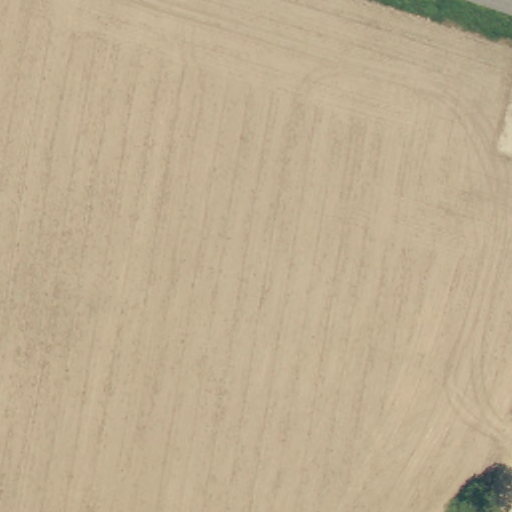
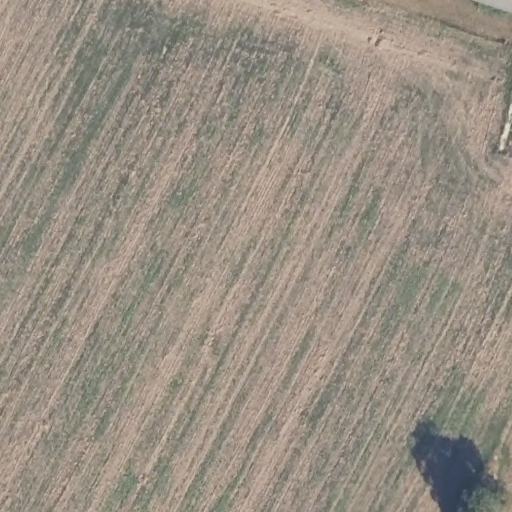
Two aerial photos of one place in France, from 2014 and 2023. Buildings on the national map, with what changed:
unchanged [(512,13),(470,0),(512,0),(512,13)]

